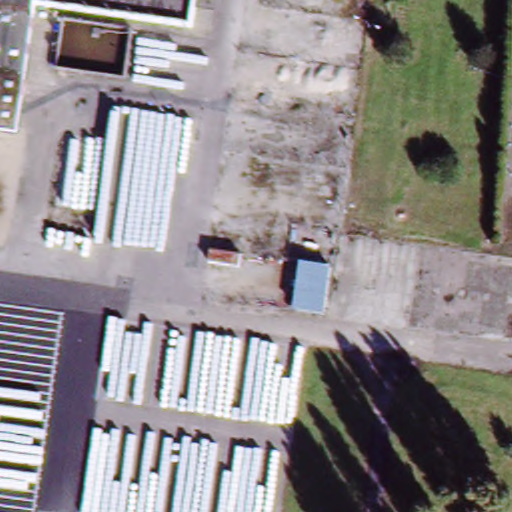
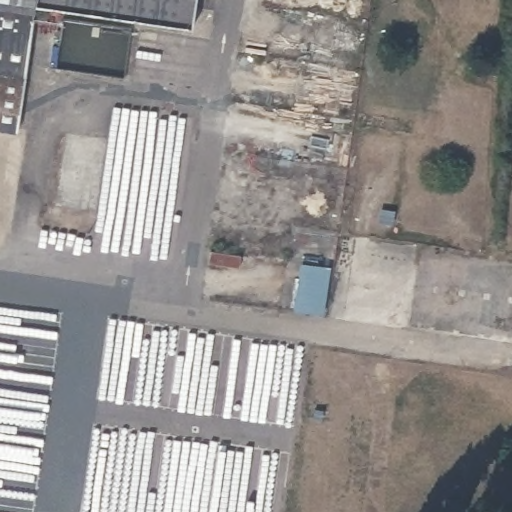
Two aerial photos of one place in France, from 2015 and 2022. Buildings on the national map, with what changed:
unchanged [(26,5),(6,132),(0,132),(0,0),(187,0),(183,27),(26,5)]
unchanged [(296,266),(326,270),(320,316),(290,312),(296,266)]

